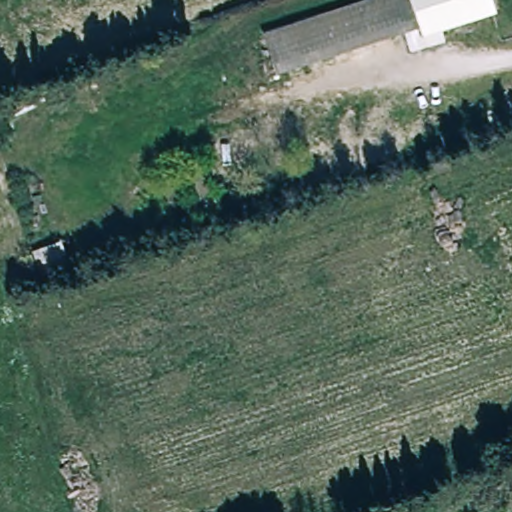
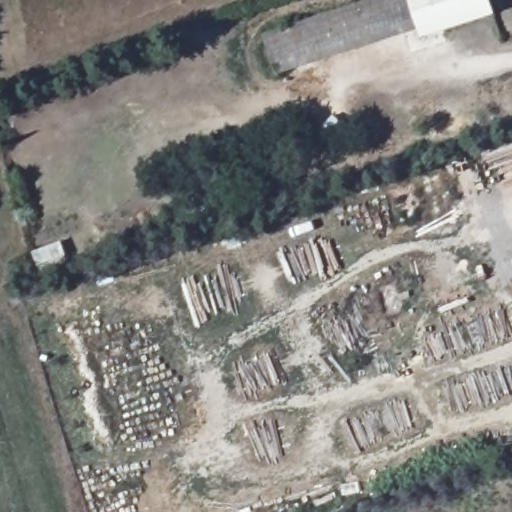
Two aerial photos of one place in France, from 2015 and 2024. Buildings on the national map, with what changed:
unchanged [(422,29),(280,75),(267,35),(373,0),(413,0),(422,29)]
unchanged [(422,29),(413,0),(492,0),(497,12),(425,36),(422,29)]
unchanged [(500,471),(512,468),(512,470),(512,478),(502,481),(490,485),(487,475),(500,471)]

